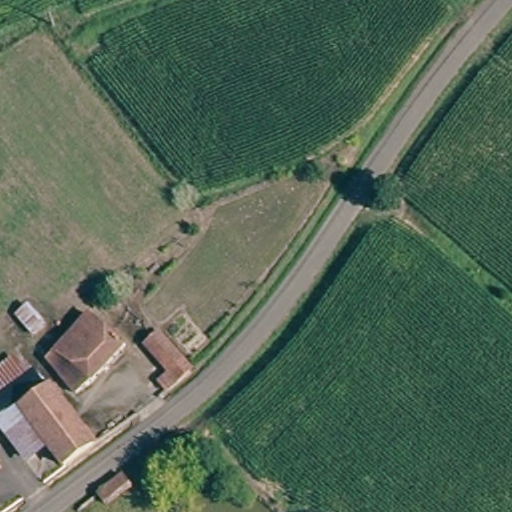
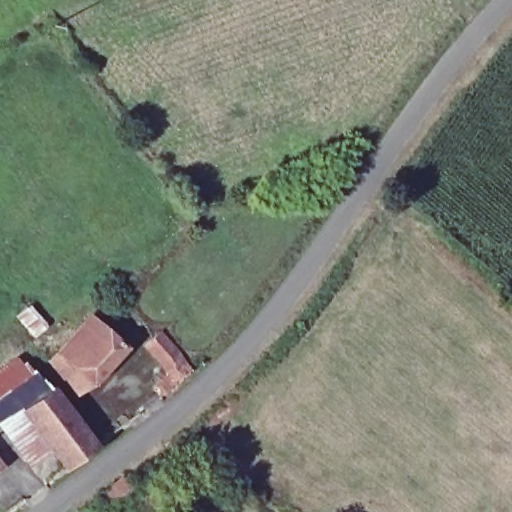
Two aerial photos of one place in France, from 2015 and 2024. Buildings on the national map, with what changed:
unchanged [(121,350),(76,397),(44,360),(88,315),(121,350)]
unchanged [(177,384),(145,343),(149,340),(158,332),(191,371),(177,384)]
unchanged [(16,354),(46,388),(51,385),(82,426),(89,425),(97,440),(94,445),(60,470),(46,452),(27,463),(0,431),(0,358),(5,364),(16,354)]
unchanged [(0,472),(0,471),(1,472),(0,472)]

